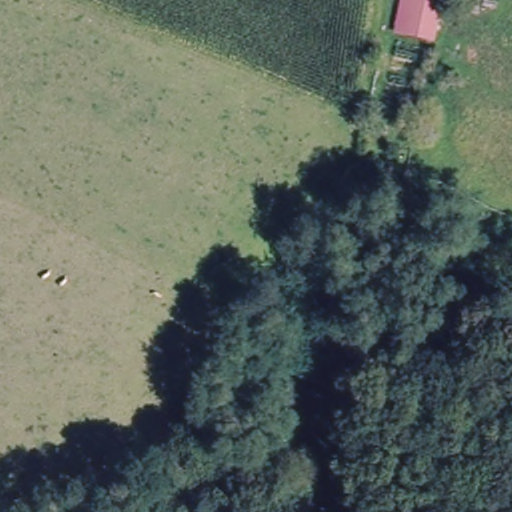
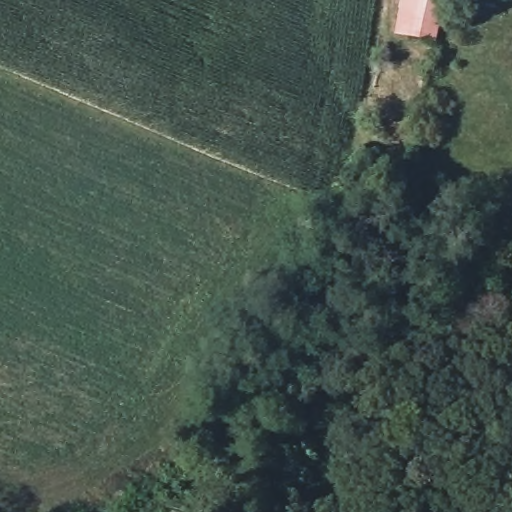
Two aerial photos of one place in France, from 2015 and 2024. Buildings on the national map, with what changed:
unchanged [(392,32),(399,0),(448,0),(436,42),(392,32)]

